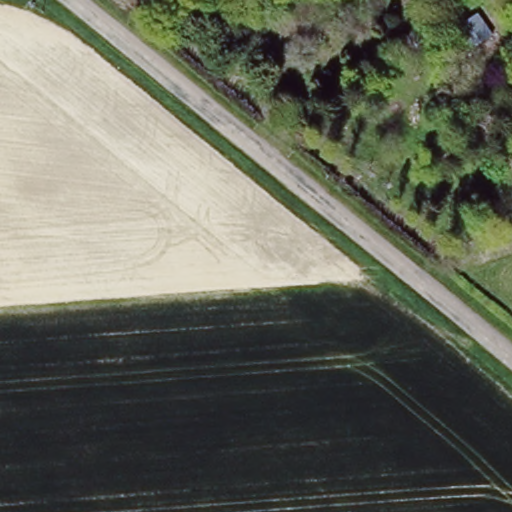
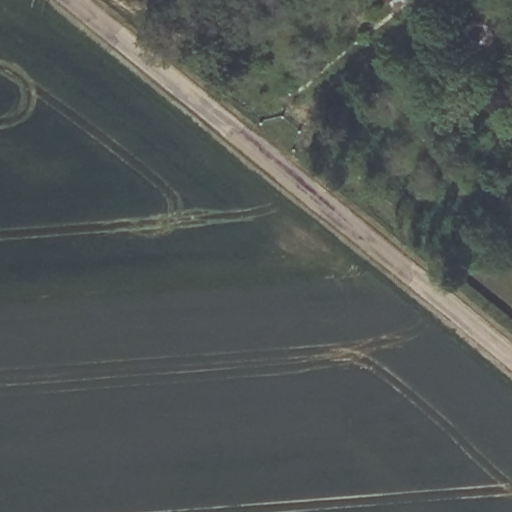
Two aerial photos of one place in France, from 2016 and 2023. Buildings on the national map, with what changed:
unchanged [(474,8),(491,37),(467,51),(449,19),(474,8)]

